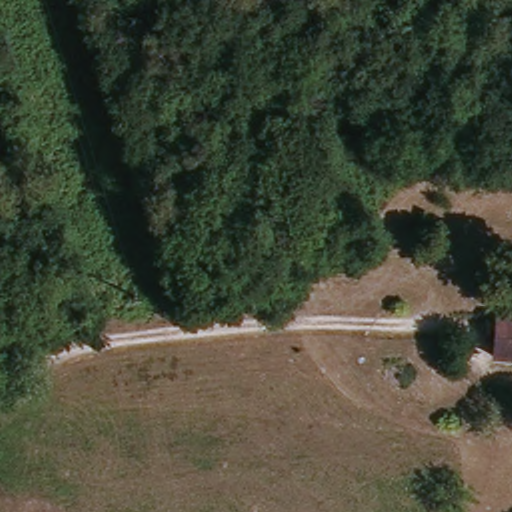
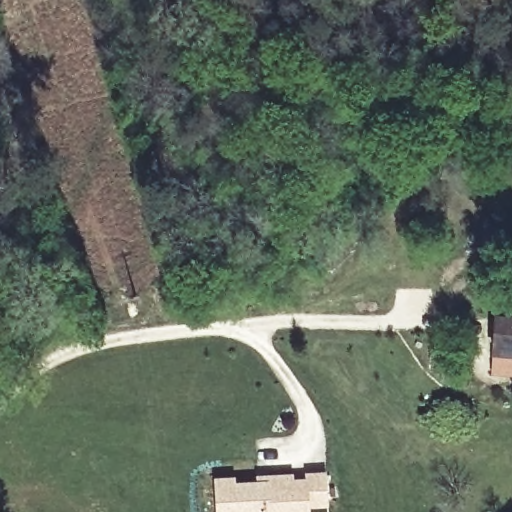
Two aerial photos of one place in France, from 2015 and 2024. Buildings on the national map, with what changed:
unchanged [(502,354),(505,314),(512,315),(512,355),(502,354)]
new [(233,479),(234,484),(255,484),(254,479),(265,477),(290,476),(290,481),(305,480),(304,476),(324,474),(325,505),(307,506),(307,512),(214,512),(213,480),(233,479)]

